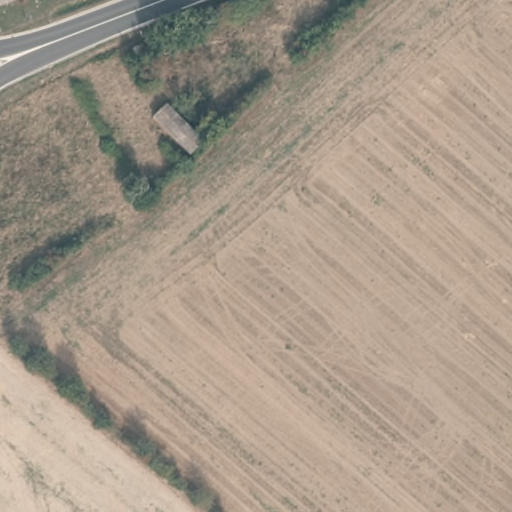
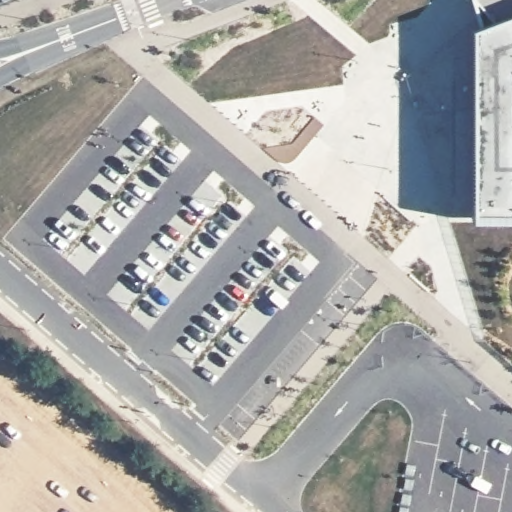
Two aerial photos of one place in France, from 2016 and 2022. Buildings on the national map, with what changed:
new [(471,223),(470,29),(475,27),(468,0),(512,0),(512,223),(471,223)]
demolished [(190,157),(155,120),(166,107),(202,144),(190,157)]

